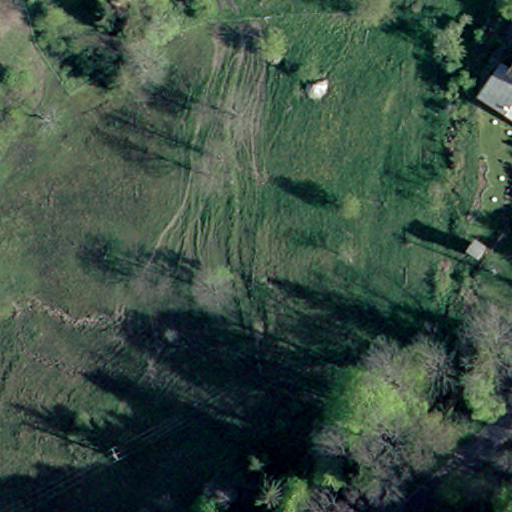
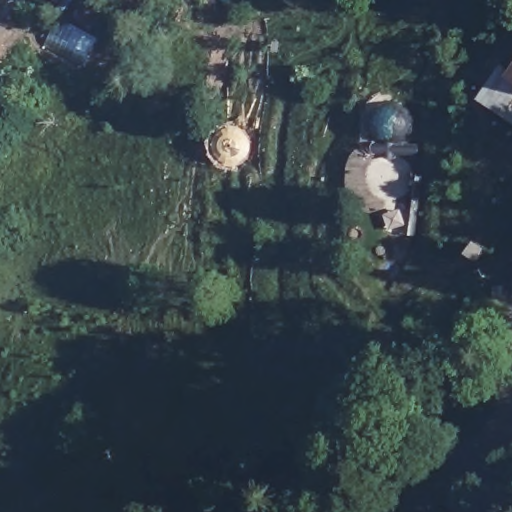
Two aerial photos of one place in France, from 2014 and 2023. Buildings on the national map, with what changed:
unchanged [(512,70),(512,123),(475,96),(497,70),(507,77),(512,70)]

